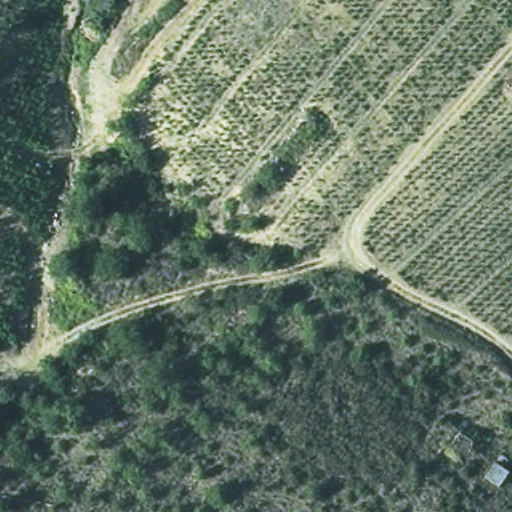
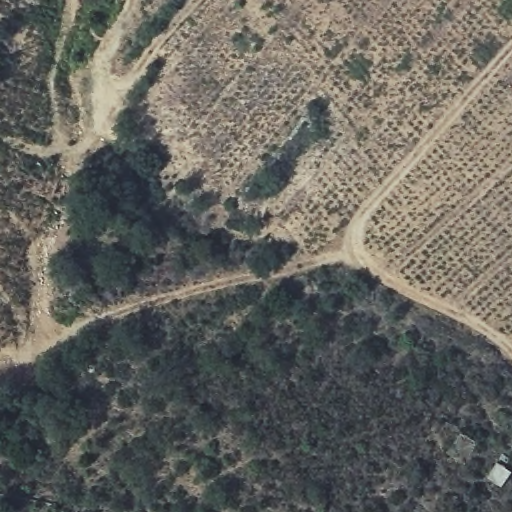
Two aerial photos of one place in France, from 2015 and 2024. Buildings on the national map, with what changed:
unchanged [(456,434),(478,440),(468,466),(444,455),(456,434)]
unchanged [(500,461),(512,467),(500,490),(485,476),(500,461)]

